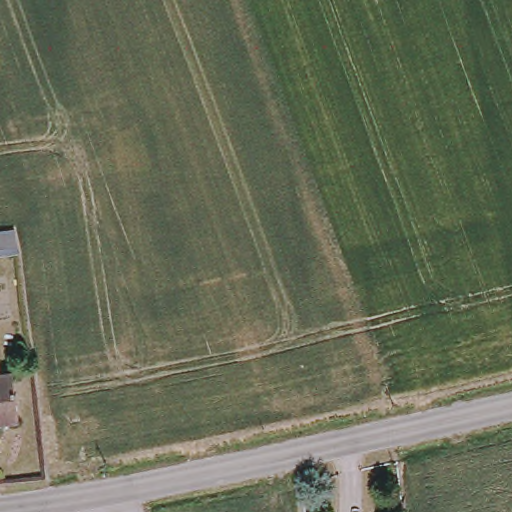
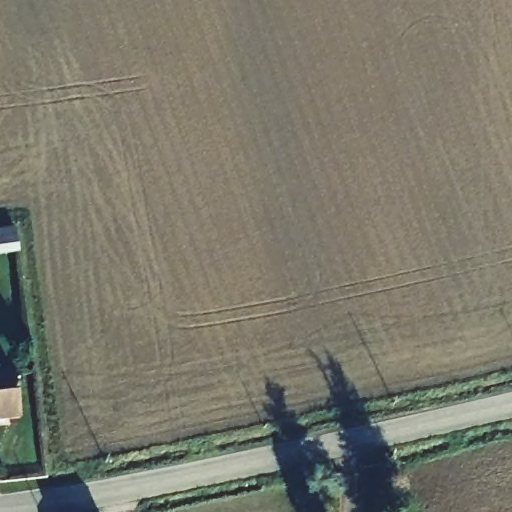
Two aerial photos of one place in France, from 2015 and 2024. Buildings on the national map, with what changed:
unchanged [(24,253),(0,257),(0,230),(21,228),(24,253)]
unchanged [(0,415),(0,368),(13,365),(19,413),(0,415)]

